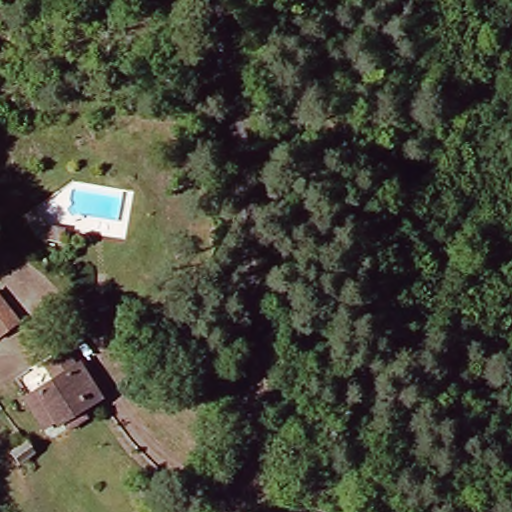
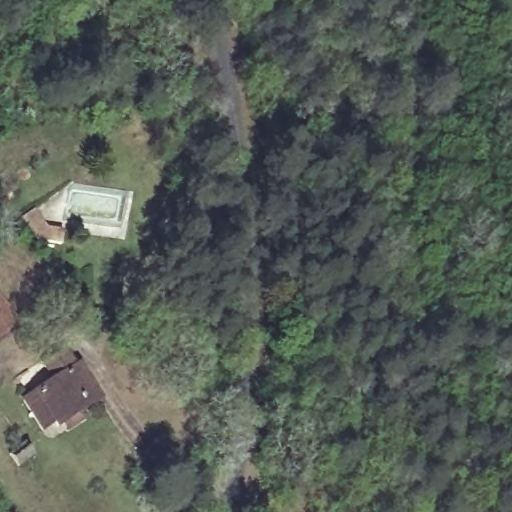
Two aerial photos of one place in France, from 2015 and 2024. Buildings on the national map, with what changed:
unchanged [(0,335),(0,305),(13,324),(0,335)]
unchanged [(47,425),(37,431),(18,399),(41,383),(33,367),(59,355),(65,368),(70,367),(91,403),(51,430),(47,425)]

